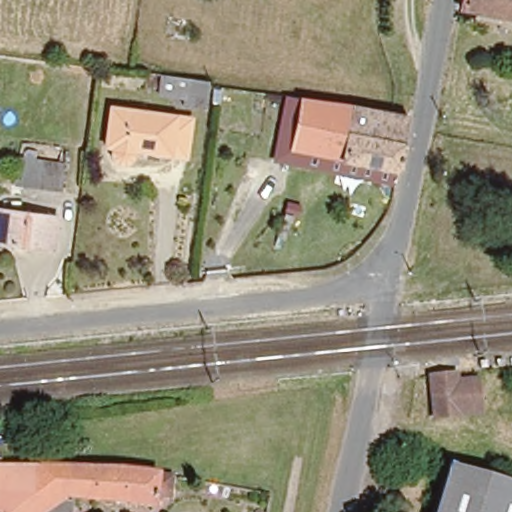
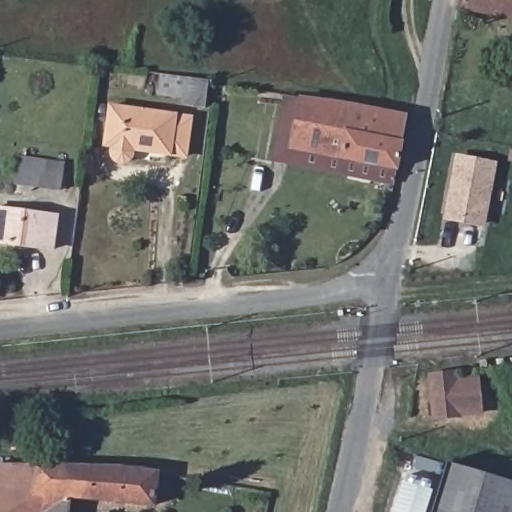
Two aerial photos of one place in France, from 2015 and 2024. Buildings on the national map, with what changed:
unchanged [(512,0),(512,18),(460,8),(462,0),(512,0)]
unchanged [(182,104),(183,98),(157,94),(161,74),(209,81),(205,107),(182,104)]
unchanged [(301,97),(353,104),(407,115),(396,168),(292,147),(301,97)]
unchanged [(110,110),(192,121),(186,161),(134,154),(132,161),(130,163),(127,165),(124,166),(121,166),(117,165),(115,163),(112,161),(112,159),(112,151),(105,150),(110,110)]
new [(482,222),(447,216),(457,156),(492,163),(482,222)]
unchanged [(60,189),(15,183),(19,158),(62,163),(60,189)]
unchanged [(57,216),(52,249),(0,242),(0,208),(57,216)]
unchanged [(476,378),(480,410),(458,412),(458,414),(435,417),(431,376),(456,373),(457,380),(476,378)]
unchanged [(70,493),(67,512),(0,512),(0,461),(124,465),(167,470),(171,474),(170,491),(156,490),(156,500),(147,499),(70,493)]
unchanged [(512,512),(434,512),(448,463),(512,483),(512,512)]

